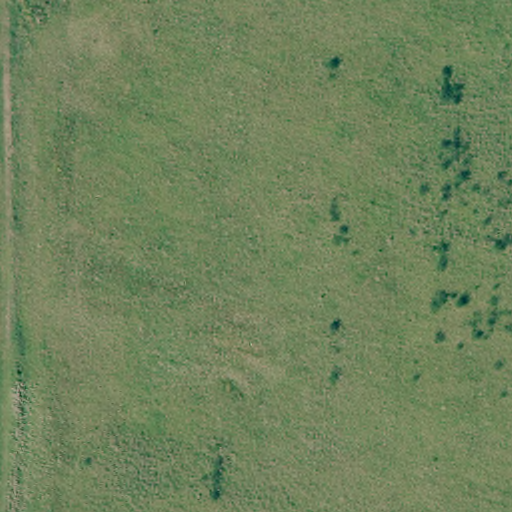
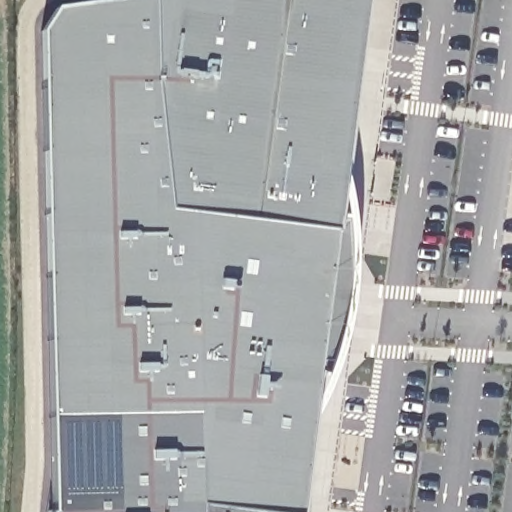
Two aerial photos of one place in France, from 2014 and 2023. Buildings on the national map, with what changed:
new [(52,512),(40,30),(56,8),(116,0),(366,0),(300,512),(52,512)]

